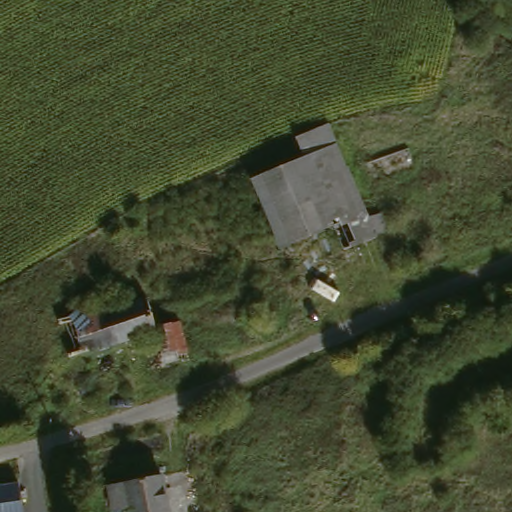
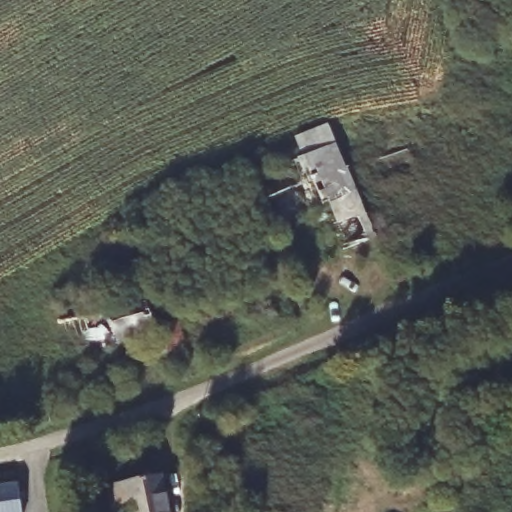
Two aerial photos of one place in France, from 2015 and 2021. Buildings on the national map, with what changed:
unchanged [(300,163),(290,144),(325,130),(362,223),(373,218),(380,236),(347,264),(342,256),(330,230),(276,251),(245,184),(300,163)]
unchanged [(156,391),(151,374),(155,374),(147,339),(64,363),(53,325),(141,303),(151,333),(174,327),(184,366),(185,364),(191,379),(156,391)]
unchanged [(43,512),(0,512),(0,479),(39,473),(43,512)]
unchanged [(102,492),(156,481),(163,512),(107,512),(102,492)]

